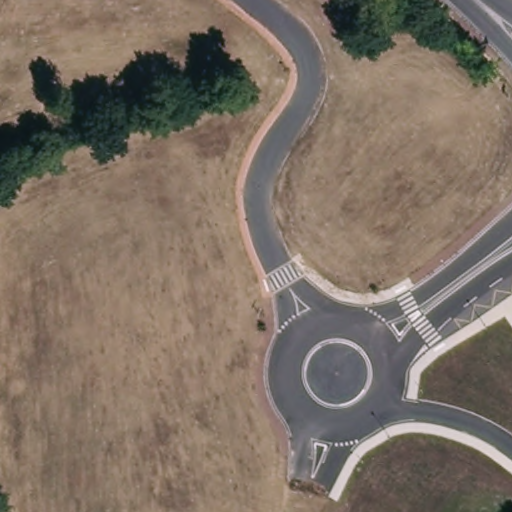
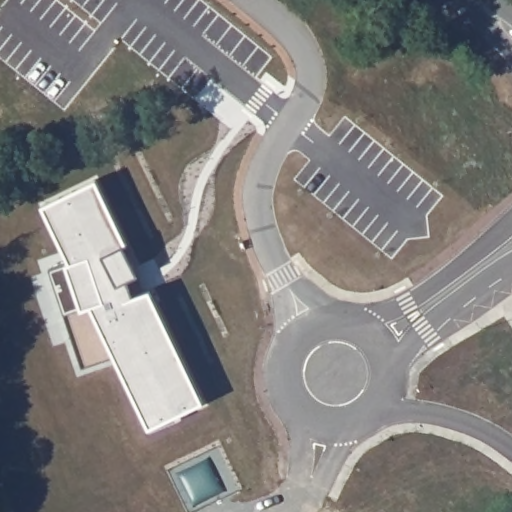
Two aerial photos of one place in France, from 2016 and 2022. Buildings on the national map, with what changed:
new [(108,358),(83,367),(49,268),(71,261),(44,204),(96,179),(127,243),(125,243),(140,274),(137,274),(145,291),(147,290),(154,304),(156,303),(203,400),(150,426),(113,348),(116,355),(108,358)]

